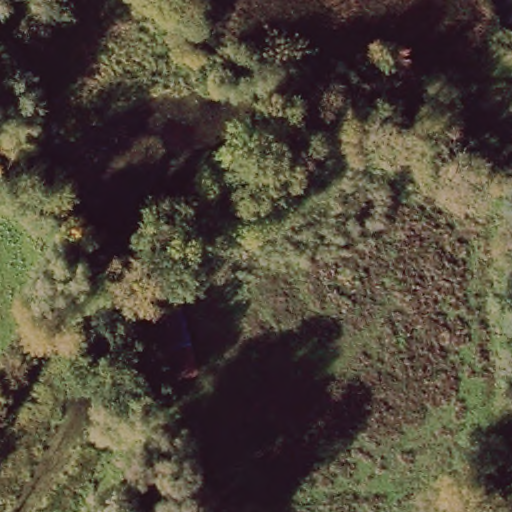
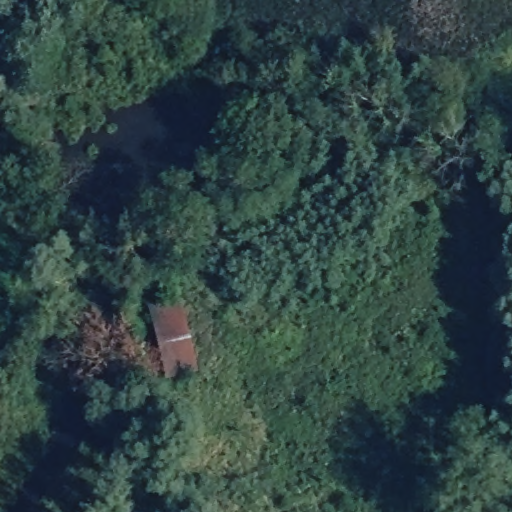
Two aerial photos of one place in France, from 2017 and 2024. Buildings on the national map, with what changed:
new [(161,308),(183,311),(198,374),(167,381),(155,330),(161,308)]

